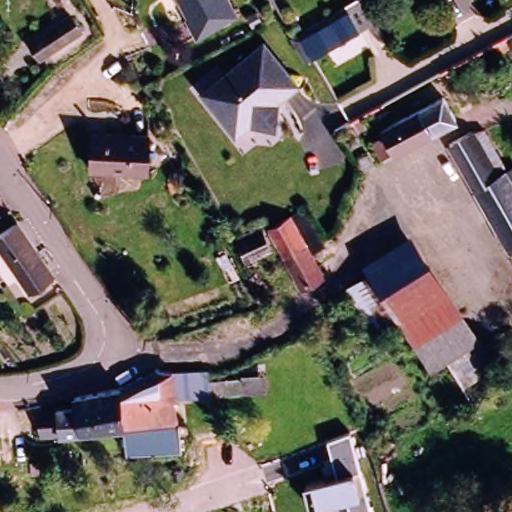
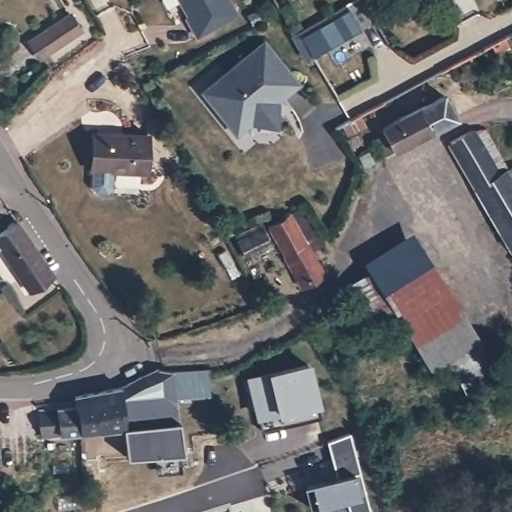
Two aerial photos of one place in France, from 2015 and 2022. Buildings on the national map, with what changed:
unchanged [(195,36),(185,19),(188,17),(179,0),(227,0),(235,14),(195,36)]
unchanged [(339,10),(344,17),(355,11),(365,29),(318,55),(311,59),(297,34),(339,10)]
unchanged [(40,58),(28,41),(70,14),(80,30),(40,58)]
unchanged [(509,46),(497,52),(490,42),(502,35),(509,46)]
unchanged [(295,78),(275,95),(277,125),(248,116),(235,127),(206,91),(202,86),(226,65),(262,36),(295,78)]
unchanged [(386,156),(379,140),(391,134),(388,127),(448,95),(460,117),(386,156)]
unchanged [(450,143),(472,130),(481,125),(495,149),(505,165),(511,161),(512,163),(512,249),(501,231),(450,143)]
unchanged [(146,172),(91,169),(93,132),(148,136),(146,172)]
unchanged [(300,205),(319,240),(306,247),(320,275),(296,286),(264,225),(287,212),(300,205)]
unchanged [(55,276),(30,293),(0,249),(0,233),(17,221),(55,276)]
unchanged [(243,258),(234,240),(256,227),(266,245),(243,258)]
unchanged [(410,230),(480,340),(449,360),(431,371),(411,339),(448,317),(400,236),(410,230)]
unchanged [(448,317),(411,339),(397,317),(377,330),(370,318),(350,285),(370,273),(362,260),(391,241),(400,236),(448,317)]
unchanged [(495,365),(465,385),(449,360),(480,340),(495,365)]
new [(305,366),(317,419),(297,423),(297,420),(291,422),(292,425),(258,432),(246,379),(305,366)]
unchanged [(178,370),(208,368),(208,378),(210,378),(240,375),(241,391),(211,393),(200,395),(175,397),(177,420),(175,420),(128,425),(127,425),(67,432),(41,435),(39,408),(43,408),(48,407),(75,405),(75,394),(100,390),(120,385),(157,368),(178,370)]
unchanged [(128,425),(175,420),(180,446),(128,448),(127,425),(128,425)]
unchanged [(328,442),(351,435),(370,512),(348,512),(345,502),(308,510),(304,486),(336,478),(328,442)]

